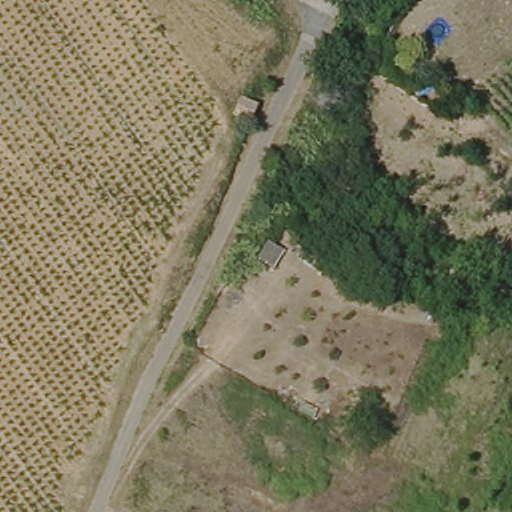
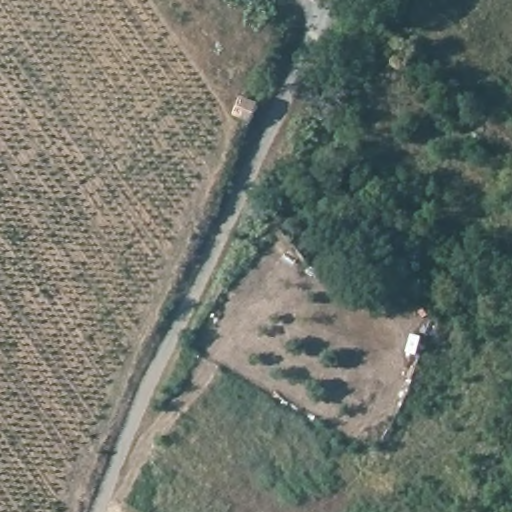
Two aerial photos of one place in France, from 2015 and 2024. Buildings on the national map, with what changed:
unchanged [(234,111),(240,96),(257,102),(251,117),(234,111)]

